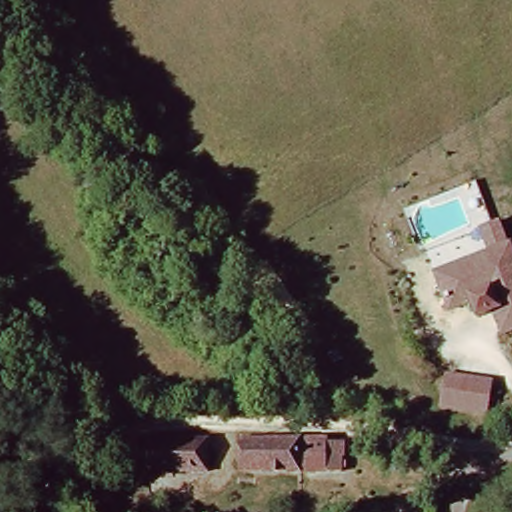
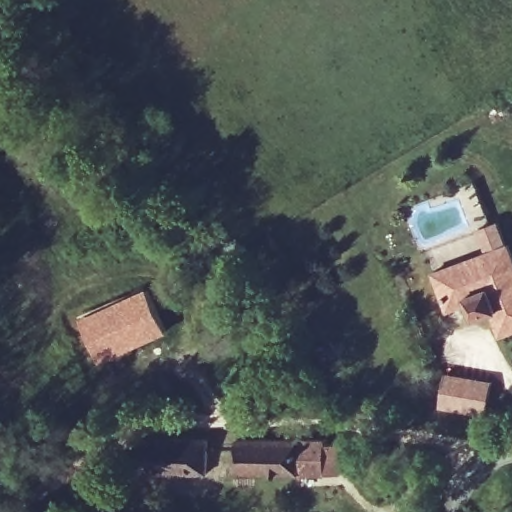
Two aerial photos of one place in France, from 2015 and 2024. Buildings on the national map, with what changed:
unchanged [(468,301),(447,309),(432,271),(507,242),(512,254),(512,330),(499,335),(490,312),(475,315),(468,301)]
new [(100,362),(81,321),(148,290),(166,330),(100,362)]
unchanged [(494,379),(490,417),(441,412),(445,373),(494,379)]
unchanged [(240,439),(305,441),(303,473),(239,471),(240,439)]
unchanged [(305,441),(347,445),(345,475),(303,473),(305,441)]
unchanged [(143,442),(205,443),(203,476),(141,474),(143,442)]

